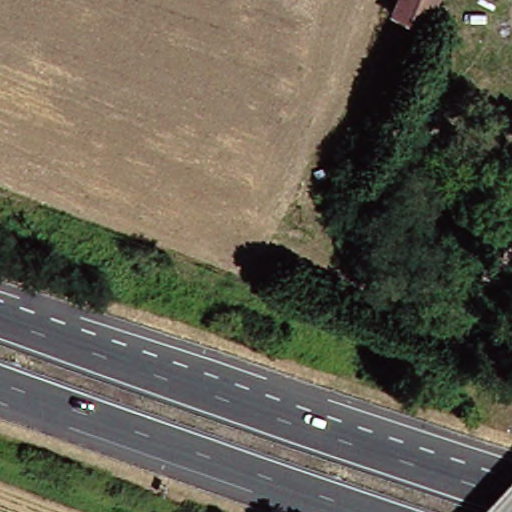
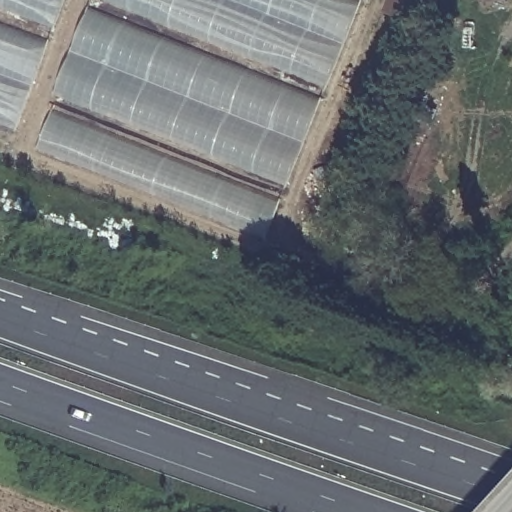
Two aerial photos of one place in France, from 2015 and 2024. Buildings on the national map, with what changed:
new [(0,127),(0,0),(70,0),(22,136),(0,127)]
new [(92,0),(365,0),(281,229),(39,144),(92,0)]
unchanged [(396,20),(384,15),(390,0),(433,0),(421,30),(396,20)]
unchanged [(346,213),(320,203),(396,20),(421,30),(346,213)]
unchanged [(381,242),(380,247),(334,230),(336,227),(340,214),(386,230),(381,242)]

